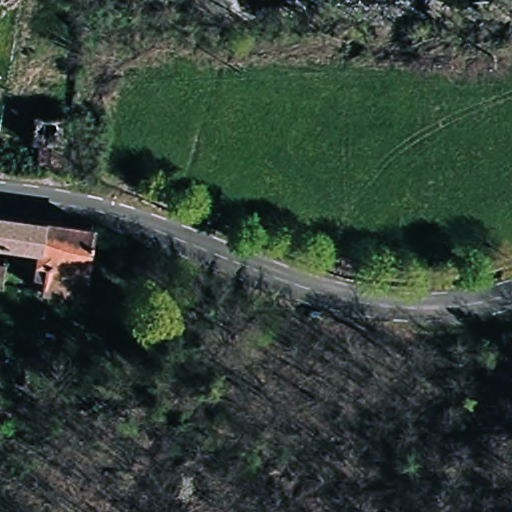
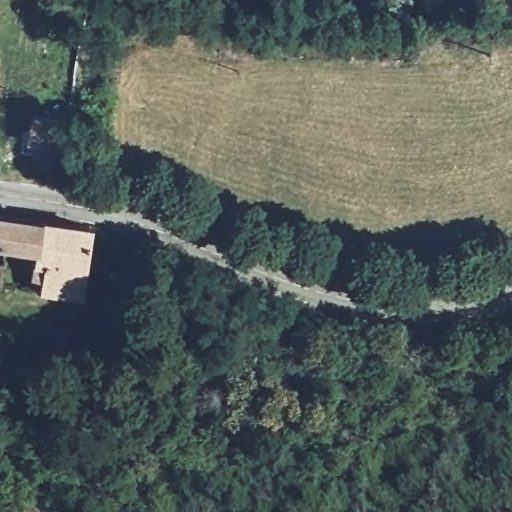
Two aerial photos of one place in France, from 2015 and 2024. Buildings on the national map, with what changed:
unchanged [(28,157),(29,138),(19,137),(21,113),(41,114),(50,96),(58,96),(62,106),(55,159),(28,157)]
unchanged [(45,287),(45,267),(34,265),(35,240),(0,238),(0,215),(61,221),(88,222),(80,286),(45,287)]
unchanged [(0,266),(3,267),(3,291),(0,290),(0,266)]

